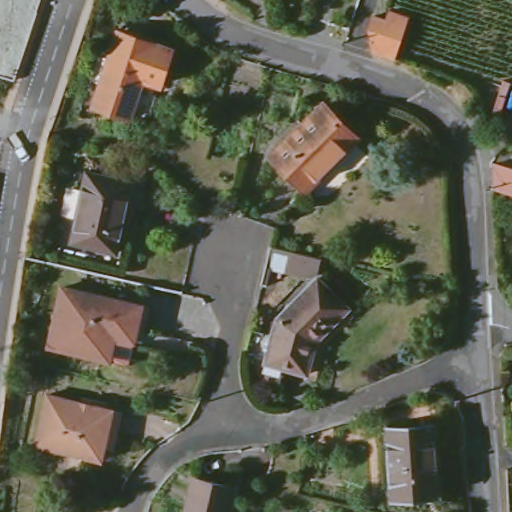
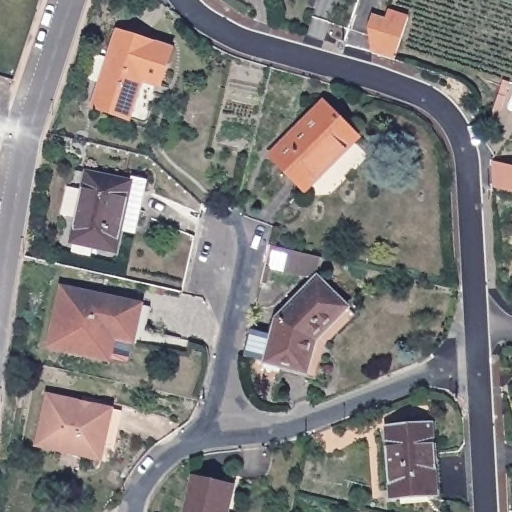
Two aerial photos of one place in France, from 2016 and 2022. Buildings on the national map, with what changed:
unchanged [(382,23),(385,14),(404,20),(390,57),(365,51),(367,45),(363,28),(367,18),(375,21),(382,23)]
unchanged [(139,74),(126,114),(92,103),(115,29),(167,45),(157,80),(139,74)]
unchanged [(275,158),(325,103),(360,133),(310,187),(275,158)]
unchanged [(492,162),(512,167),(512,195),(492,190),(492,162)]
unchanged [(67,246),(82,176),(127,186),(139,189),(132,217),(120,214),(111,256),(67,246)]
unchanged [(318,256),(315,270),(314,270),(308,275),(262,265),(261,265),(266,245),(318,256)]
unchanged [(265,364),(275,318),(313,276),(345,306),(315,339),(305,371),(265,364)]
unchanged [(117,325),(109,359),(50,345),(64,288),(145,306),(139,330),(117,325)]
unchanged [(99,458),(34,445),(44,393),(109,406),(119,409),(111,447),(101,445),(99,458)]
unchanged [(392,497),(387,427),(430,424),(435,495),(392,497)]
unchanged [(198,478),(235,486),(228,512),(190,512),(198,478)]

